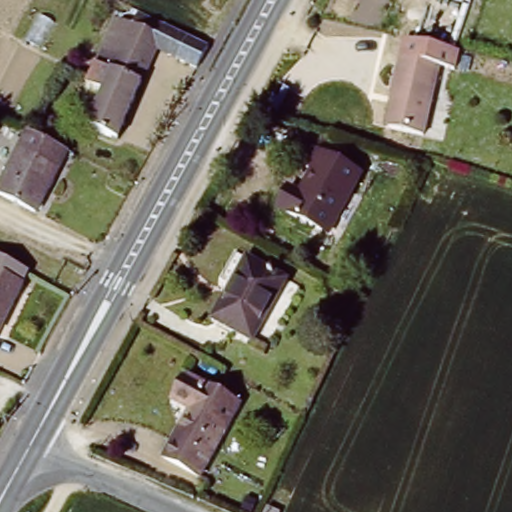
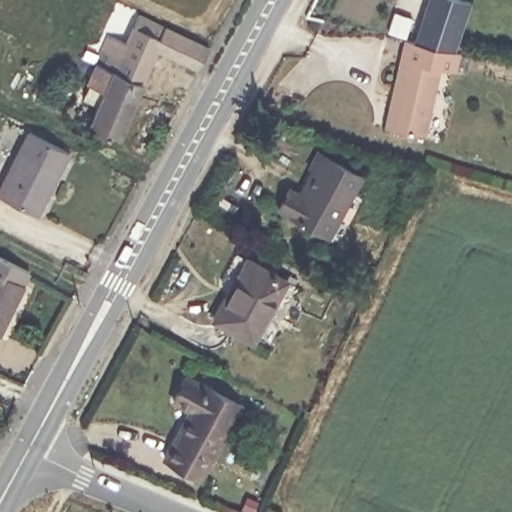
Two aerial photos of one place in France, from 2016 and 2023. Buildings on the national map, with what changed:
new [(462,52),(458,69),(441,66),(447,44),(414,36),(425,0),(470,0),(472,0),(457,51),(462,52)]
unchanged [(100,99),(79,90),(115,9),(206,48),(193,72),(154,51),(114,142),(86,130),(100,99)]
unchanged [(393,94),(408,35),(447,44),(424,135),(391,127),(385,126),(393,94)]
unchanged [(33,214),(0,195),(0,187),(33,128),(69,149),(33,214)]
unchanged [(333,232),(284,207),(294,187),(306,193),(318,170),(313,167),(321,151),(364,173),(333,232)]
unchanged [(0,253),(30,268),(0,326),(0,253)]
unchanged [(255,340),(216,318),(236,281),(243,285),(258,260),(289,277),(255,340)]
unchanged [(206,466),(171,447),(195,400),(178,391),(191,366),(244,394),(206,466)]

